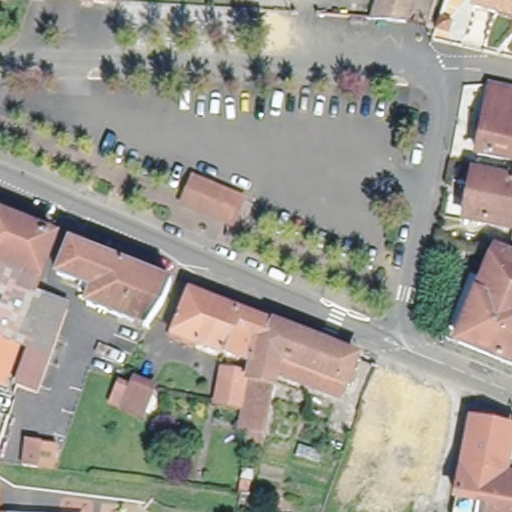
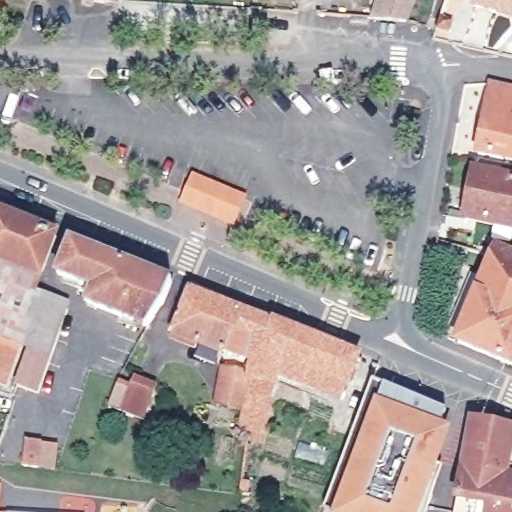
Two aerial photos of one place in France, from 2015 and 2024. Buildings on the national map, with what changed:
unchanged [(406,19),(376,17),(373,17),(379,0),(413,0),(406,19)]
new [(472,6),(473,0),(512,0),(512,19),(472,6)]
demolished [(499,2),(497,5),(482,0),(512,0),(512,6),(499,2)]
unchanged [(439,10),(451,14),(447,27),(435,24),(439,10)]
unchanged [(351,23),(350,31),(338,30),(339,22),(351,23)]
unchanged [(489,79),(512,84),(512,161),(474,153),(486,96),(489,79)]
unchanged [(462,217),(471,170),(510,179),(512,167),(512,228),(462,217)]
unchanged [(188,193),(195,175),(242,196),(232,220),(218,214),(184,200),(188,193)]
unchanged [(0,231),(0,210),(59,234),(39,293),(69,304),(51,351),(39,386),(23,381),(35,347),(20,342),(9,375),(4,387),(0,385),(0,265),(11,236),(0,231)]
unchanged [(0,265),(0,231),(11,236),(0,265)]
unchanged [(72,238),(140,266),(124,313),(89,299),(95,284),(61,271),(72,238)]
unchanged [(495,255),(497,249),(509,254),(512,255),(512,354),(507,366),(456,346),(491,263),(495,255)]
unchanged [(140,266),(174,280),(168,300),(154,325),(124,313),(140,266)]
unchanged [(232,346),(233,344),(203,332),(201,335),(174,324),(191,282),(275,315),(258,356),(232,346)]
unchanged [(250,402),(258,356),(275,315),(361,350),(344,389),(280,362),(270,426),(253,423),(247,422),(250,402)]
unchanged [(226,390),(230,365),(253,368),(247,402),(224,398),(226,390)]
demolished [(381,368),(464,402),(447,498),(421,494),(429,446),(408,440),(404,446),(375,433),(381,412),(382,410),(368,406),(381,368)]
unchanged [(117,392),(120,379),(133,382),(134,376),(155,380),(150,402),(149,408),(115,400),(117,392)]
new [(373,380),(447,411),(442,425),(453,430),(421,512),(330,512),(324,510),(373,380)]
unchanged [(472,416),(512,424),(512,433),(504,472),(482,468),(477,496),(458,492),(472,416)]
unchanged [(37,465),(39,443),(50,444),(54,445),(53,467),(45,466),(37,465)]
unchanged [(504,472),(512,473),(512,512),(488,512),(492,499),(477,496),(482,468),(504,472)]

